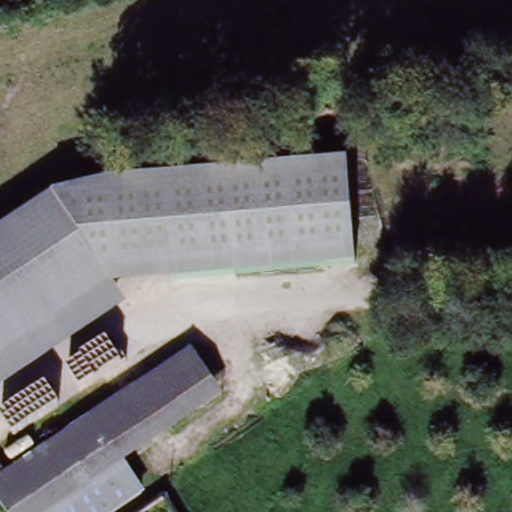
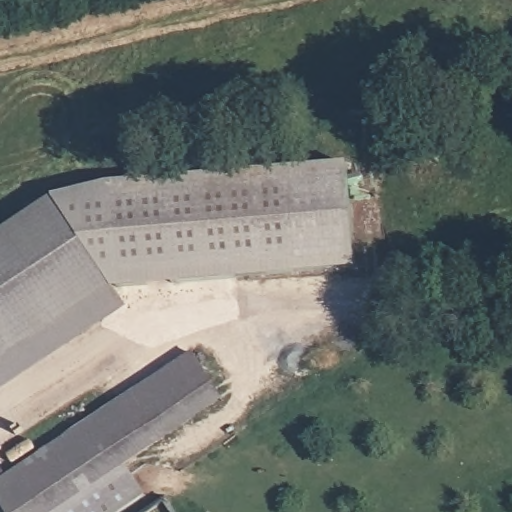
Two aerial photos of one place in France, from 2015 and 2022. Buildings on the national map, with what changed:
unchanged [(117,183),(347,167),(355,277),(122,294),(54,196),(117,183)]
unchanged [(0,230),(54,196),(122,294),(68,333),(0,231),(0,230)]
unchanged [(0,231),(68,333),(0,382),(0,231)]
unchanged [(0,481),(195,356),(226,404),(58,512),(11,512),(5,502),(0,505),(0,481)]
unchanged [(142,497),(118,512),(61,512),(124,471),(142,497)]

